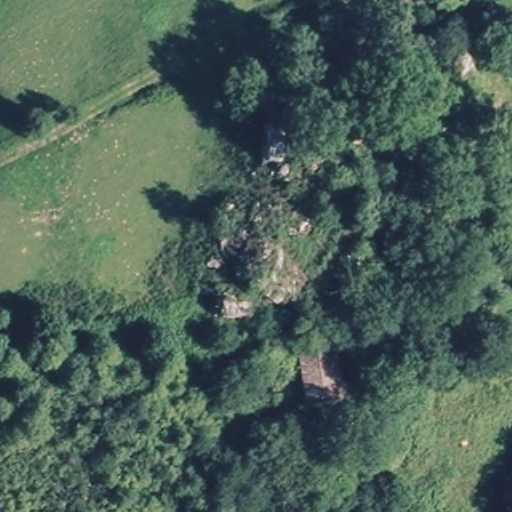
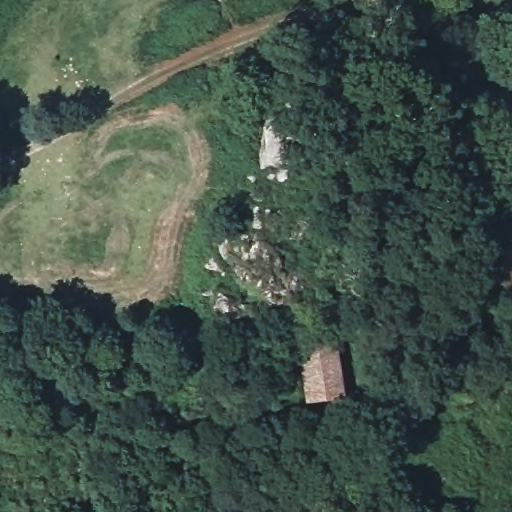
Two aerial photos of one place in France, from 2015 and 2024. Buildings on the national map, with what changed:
unchanged [(310,397),(303,341),(336,337),(342,393),(310,397)]

